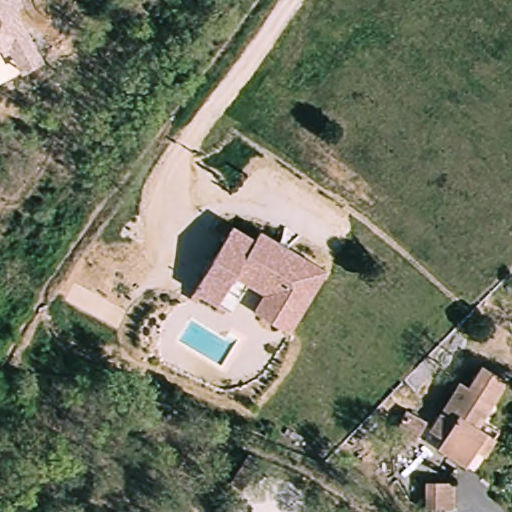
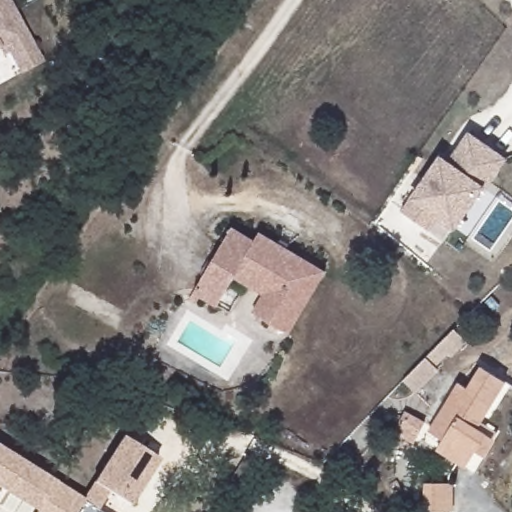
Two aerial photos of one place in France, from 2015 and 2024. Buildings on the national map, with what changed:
unchanged [(45,61),(24,74),(12,54),(5,58),(0,49),(0,0),(11,0),(45,61)]
new [(426,228),(401,211),(434,163),(440,155),(448,161),(468,131),(504,156),(483,186),(481,185),(454,225),(444,240),(426,228)]
unchanged [(229,222),(252,237),(257,228),(323,268),(284,331),(261,317),(280,286),(238,260),(218,293),(194,279),(229,222)]
unchanged [(194,279),(218,293),(238,260),(280,286),(261,317),(249,309),(260,291),(242,280),(224,310),(188,289),(194,279)]
new [(454,328),(465,340),(450,354),(447,351),(432,365),(437,369),(414,393),(401,381),(454,328)]
unchanged [(498,439),(500,440),(488,458),(479,452),(470,468),(440,449),(446,440),(432,431),(463,383),(471,388),(485,366),(510,382),(486,421),(503,431),(498,439)]
unchanged [(428,422),(418,442),(397,431),(407,411),(428,422)]
new [(111,492),(99,510),(101,512),(36,512),(36,511),(0,488),(0,447),(55,480),(85,498),(95,482),(124,436),(161,459),(132,505),(111,492)]
unchanged [(255,461),(237,489),(228,483),(246,455),(255,461)]
unchanged [(424,510),(424,484),(452,484),(452,511),(424,510)]

